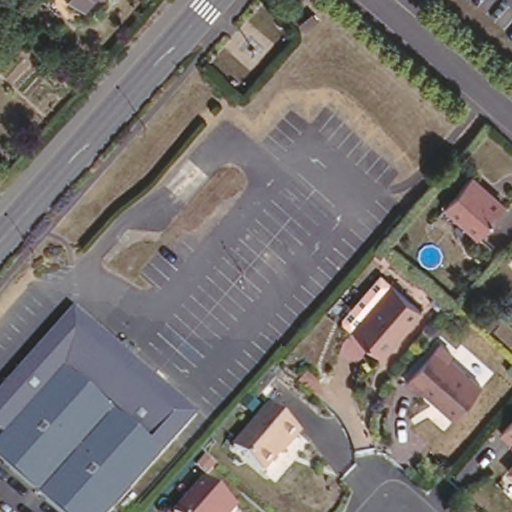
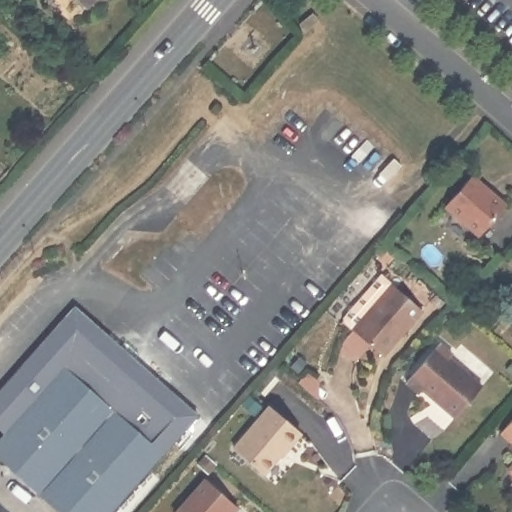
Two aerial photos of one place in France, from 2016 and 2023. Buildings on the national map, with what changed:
unchanged [(507,200),(467,245),(453,231),(461,223),(444,205),(475,174),(507,200)]
unchanged [(388,290),(417,316),(382,355),(353,329),(388,290)]
unchanged [(197,411),(107,512),(61,512),(0,457),(0,432),(3,430),(0,427),(0,380),(73,300),(197,411)]
unchanged [(445,345),(456,354),(451,360),(487,391),(460,423),(423,392),(420,395),(410,386),(445,345)]
unchanged [(264,407),(301,441),(267,477),(230,442),(264,407)]
unchanged [(512,424),(512,436),(506,430),(512,424)]
unchanged [(201,478),(230,505),(223,512),(172,512),(201,478)]

